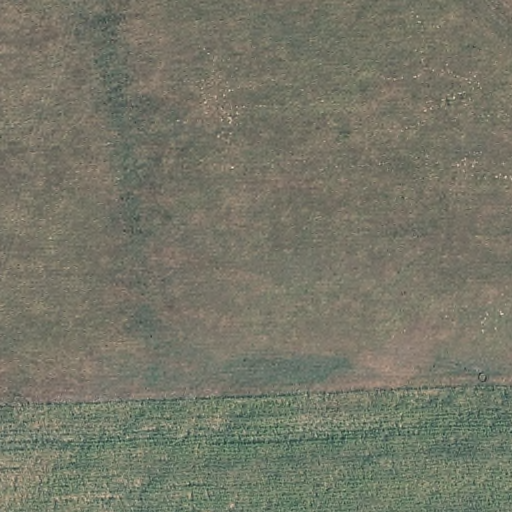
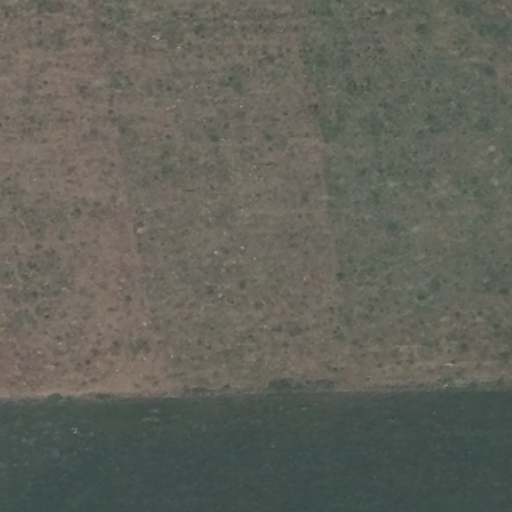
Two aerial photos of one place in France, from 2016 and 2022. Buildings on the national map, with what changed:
[]

